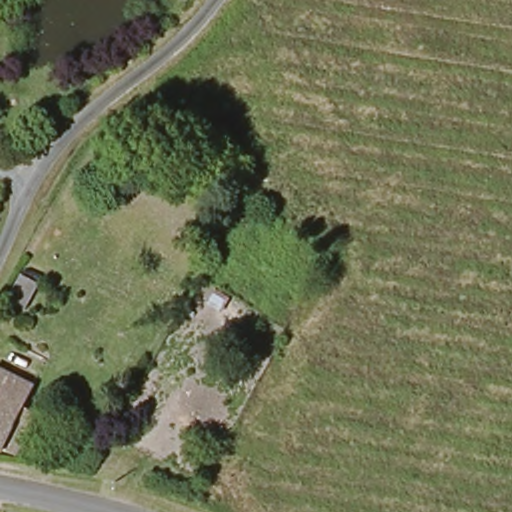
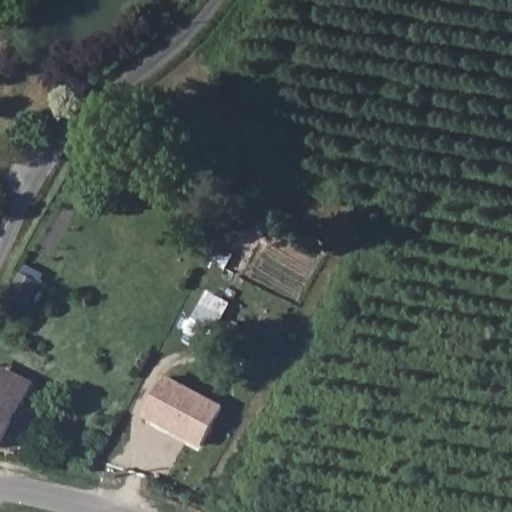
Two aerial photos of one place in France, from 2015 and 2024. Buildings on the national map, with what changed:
unchanged [(45,272),(29,306),(11,298),(25,263),(45,272)]
new [(209,297),(230,310),(209,346),(189,334),(209,297)]
unchanged [(35,388),(1,450),(0,449),(0,370),(0,369),(35,388)]
new [(202,450),(144,418),(166,375),(224,406),(202,450)]

